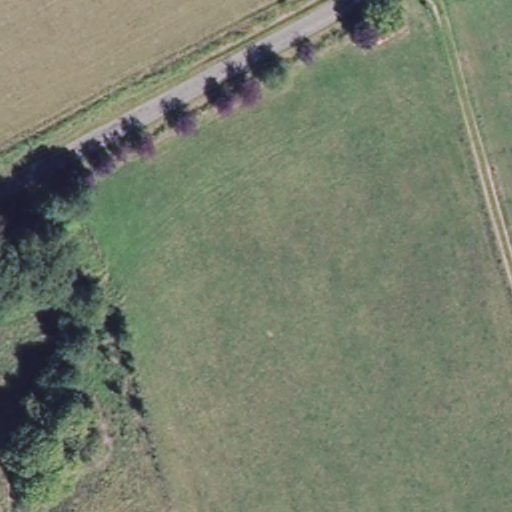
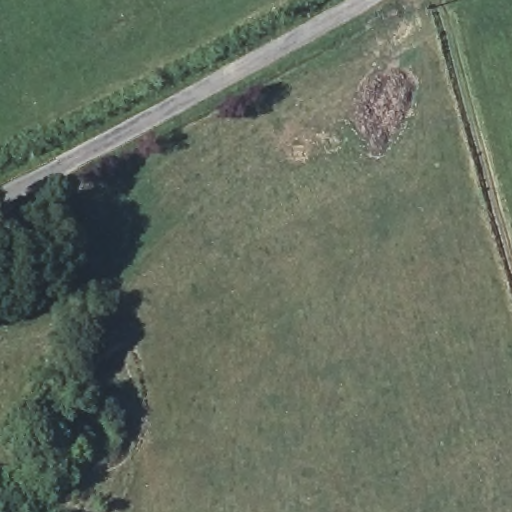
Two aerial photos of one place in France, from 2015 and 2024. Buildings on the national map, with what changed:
unchanged [(395,9),(407,30),(381,44),(369,25),(395,9)]

